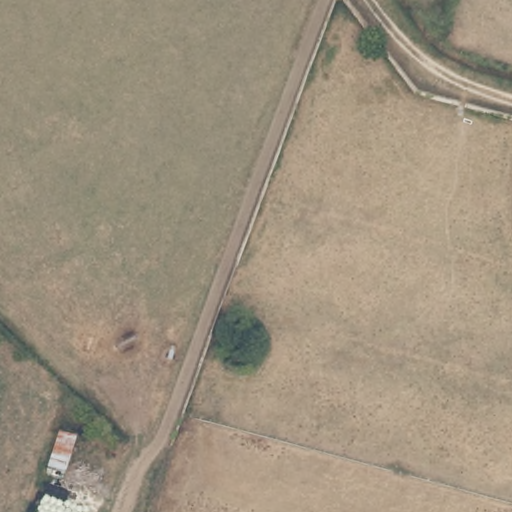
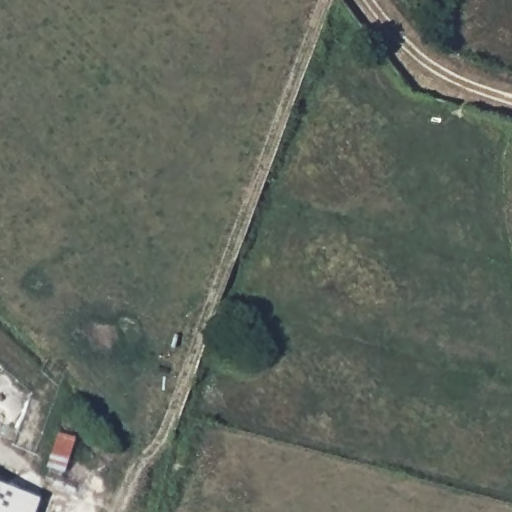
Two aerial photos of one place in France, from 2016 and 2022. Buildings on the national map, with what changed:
new [(37,512),(0,512),(0,485),(42,500),(37,512)]

